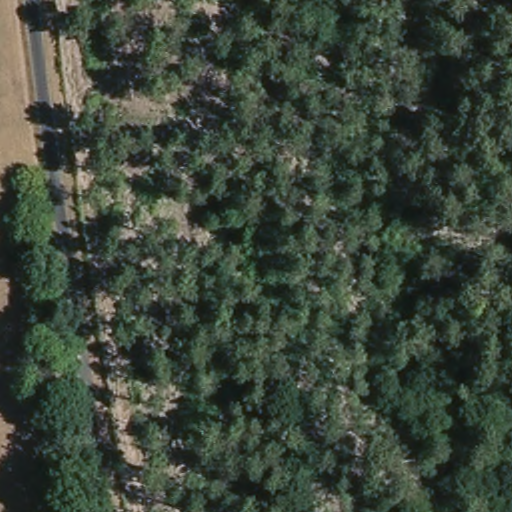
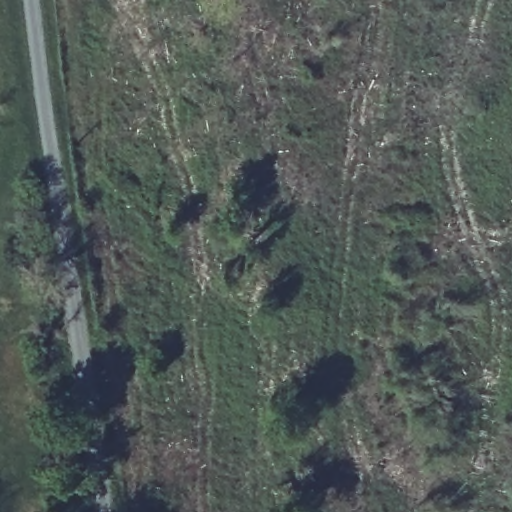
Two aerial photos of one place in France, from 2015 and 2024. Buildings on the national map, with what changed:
[]

